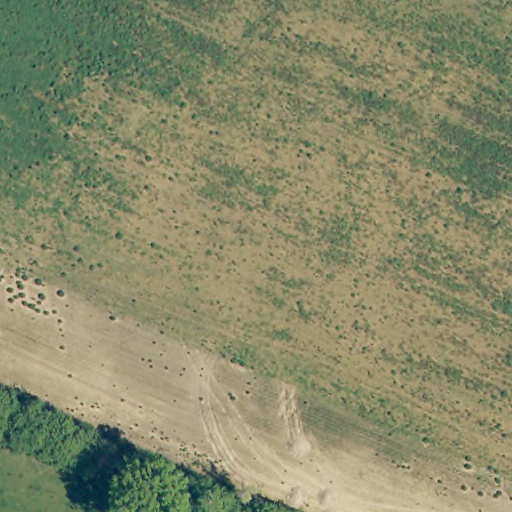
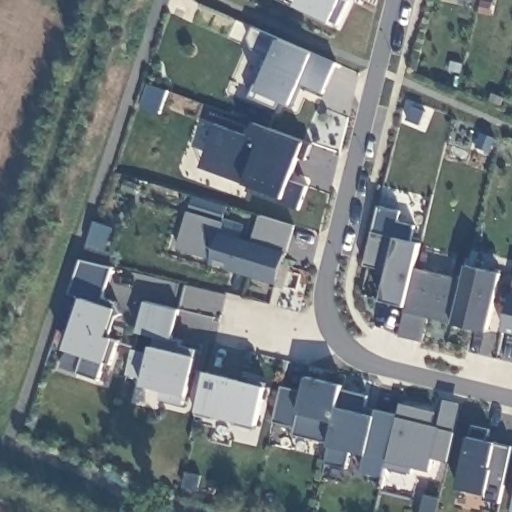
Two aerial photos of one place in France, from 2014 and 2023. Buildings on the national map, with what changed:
new [(297,0),(349,0),(337,25),(294,5),(297,0)]
new [(303,85),(294,105),(291,104),(278,99),(275,106),(251,96),(256,87),(269,55),(252,47),(249,37),(254,27),(279,36),(313,51),(337,61),(322,93),(303,85)]
new [(307,159),(301,154),(292,176),(309,185),(300,209),(251,192),(254,186),(246,184),(200,169),(217,121),(250,135),(256,121),(307,140),(314,142),(307,159)]
new [(277,285),(209,263),(210,257),(177,246),(188,210),(226,222),(224,230),(250,237),(258,213),(295,224),(277,285)]
new [(382,299),(388,270),(366,266),(374,230),(396,236),(421,241),(405,305),(382,299)]
new [(77,372),(85,355),(64,347),(81,297),(69,292),(83,258),(113,267),(103,295),(115,300),(122,313),(114,315),(109,336),(118,340),(109,365),(103,362),(97,380),(77,372)]
new [(158,398),(161,389),(142,385),(144,379),(127,373),(133,348),(149,352),(151,345),(155,345),(156,336),(136,330),(145,298),(179,309),(171,336),(182,340),(181,345),(196,348),(195,356),(186,395),(183,405),(158,398)]
new [(236,425),(236,422),(215,415),(214,418),(197,414),(197,410),(205,369),(264,384),(256,425),(255,430),(236,425)]
new [(323,462),(328,442),(293,433),(294,426),(273,421),(282,385),(302,390),(306,375),(342,383),(341,389),(367,394),(365,405),(397,412),(400,402),(435,410),(432,423),(439,425),(444,398),(461,402),(448,461),(433,457),(430,471),(412,467),(411,473),(384,467),(382,476),(362,470),(367,455),(350,450),(346,468),(323,462)]
new [(483,500),(485,492),(457,486),(469,433),(474,425),(490,429),(487,440),(495,442),(511,446),(498,502),(483,500)]

